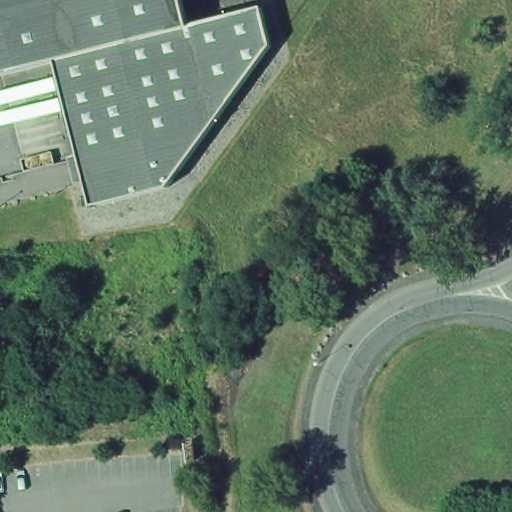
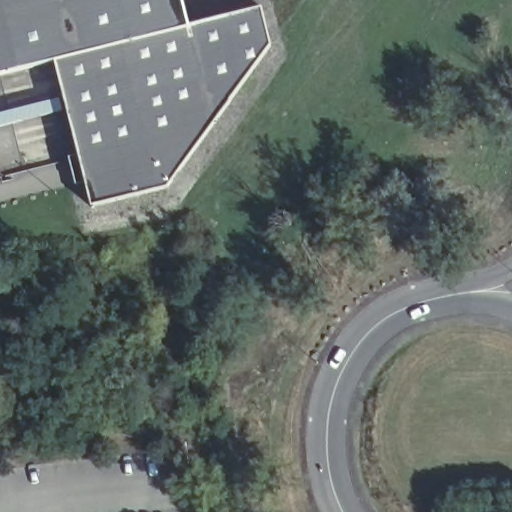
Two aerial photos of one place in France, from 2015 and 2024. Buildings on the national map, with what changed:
unchanged [(0,59),(0,0),(175,0),(180,26),(259,10),(269,48),(164,190),(155,192),(82,207),(71,161),(61,164),(54,137),(64,135),(39,39),(0,59)]

